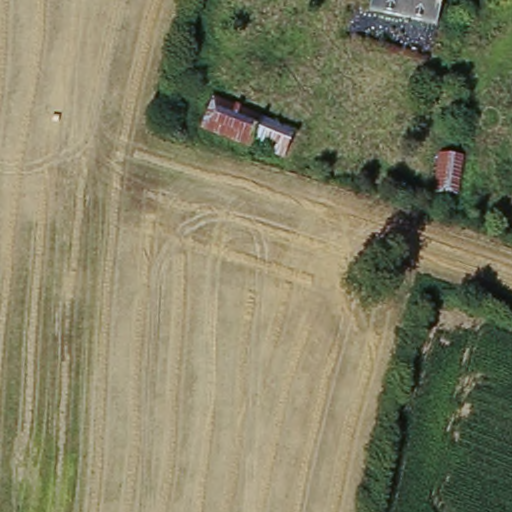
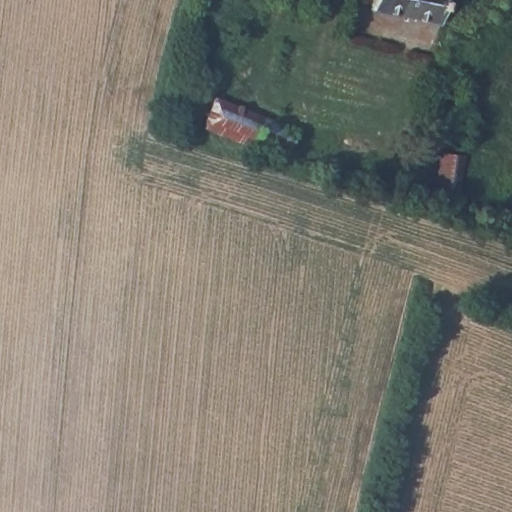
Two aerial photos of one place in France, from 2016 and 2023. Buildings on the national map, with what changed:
unchanged [(442,17),(372,2),(372,0),(445,0),(442,17)]
unchanged [(294,152),(263,140),(261,147),(214,128),(225,100),(271,119),(301,131),(294,152)]
unchanged [(461,189),(436,186),(441,153),(464,156),(461,189)]

